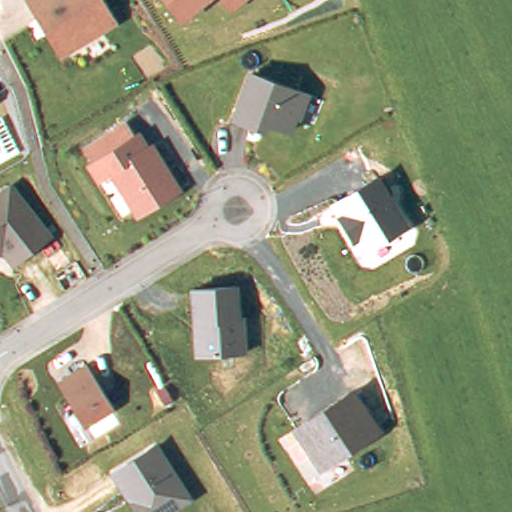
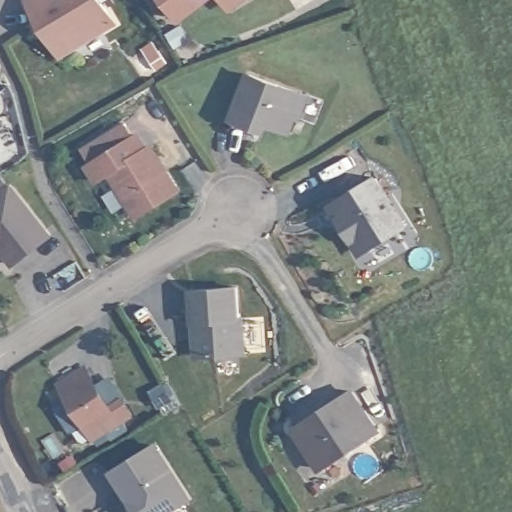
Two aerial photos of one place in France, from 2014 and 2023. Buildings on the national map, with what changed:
unchanged [(115,22),(63,56),(23,1),(25,0),(102,0),(115,22)]
unchanged [(180,26),(158,0),(209,0),(180,26)]
unchanged [(231,12),(221,0),(245,0),(231,12)]
unchanged [(310,94),(295,136),(264,128),(260,136),(228,123),(243,75),(310,94)]
unchanged [(181,194),(138,221),(106,178),(95,185),(85,167),(139,134),(181,194)]
unchanged [(409,228),(365,255),(329,206),(375,178),(409,228)]
unchanged [(17,267),(1,251),(0,252),(0,194),(10,187),(58,236),(17,267)]
unchanged [(243,356),(191,359),(189,290),(239,289),(243,356)]
unchanged [(113,408),(83,426),(56,384),(86,367),(113,408)]
unchanged [(381,431),(321,471),(291,430),(353,390),(381,431)]
unchanged [(165,512),(134,512),(110,472),(153,447),(188,496),(165,512)]

